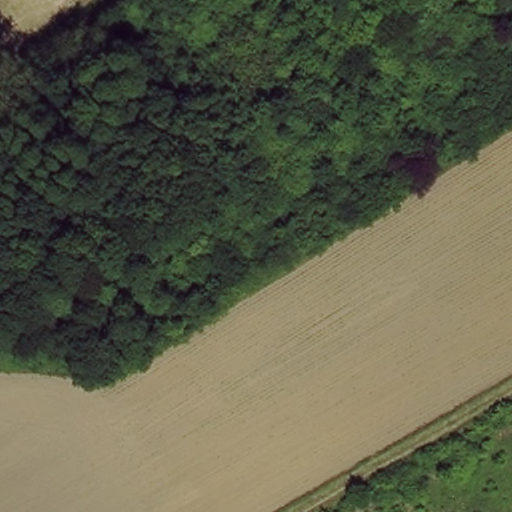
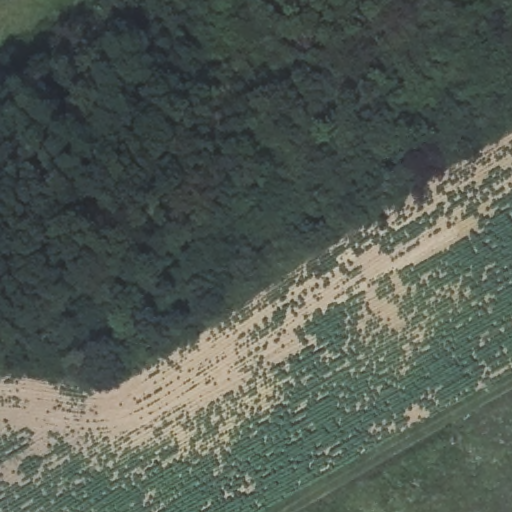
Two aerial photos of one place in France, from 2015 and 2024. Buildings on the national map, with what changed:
unchanged [(122,316),(108,319),(105,300),(120,299),(122,316)]

